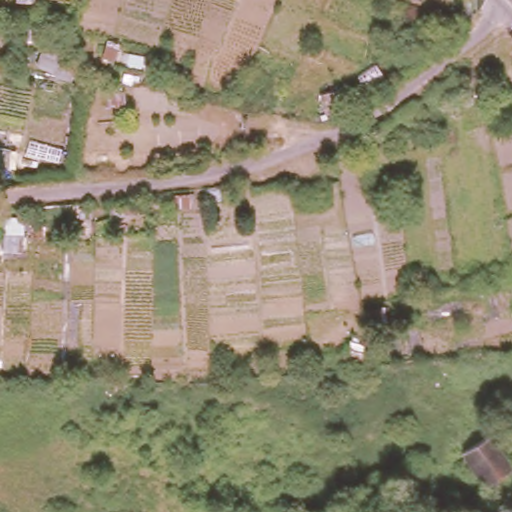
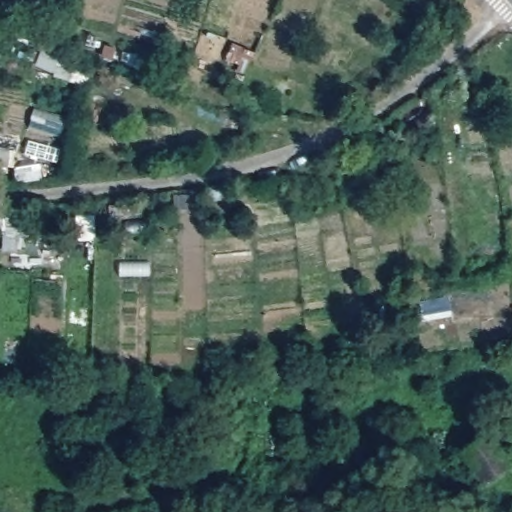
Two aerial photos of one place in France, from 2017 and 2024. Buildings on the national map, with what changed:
unchanged [(512,463),(512,467),(486,483),(464,446),(493,430),(512,463)]

